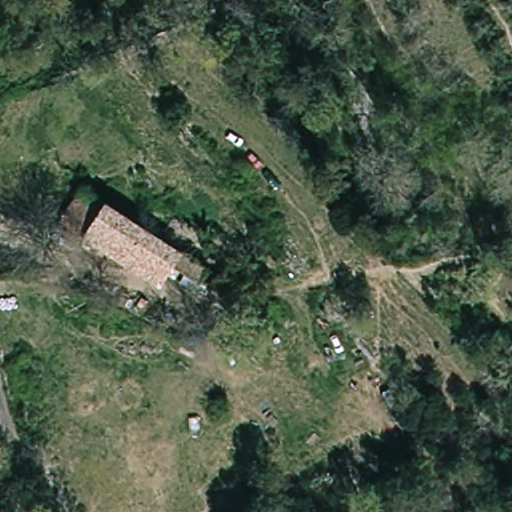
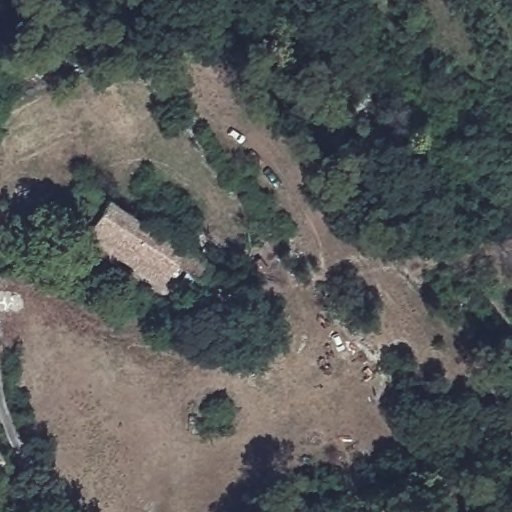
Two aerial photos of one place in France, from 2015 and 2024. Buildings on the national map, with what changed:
unchanged [(115,256),(72,234),(91,198),(203,255),(195,268),(175,258),(169,268),(164,281),(115,256)]

